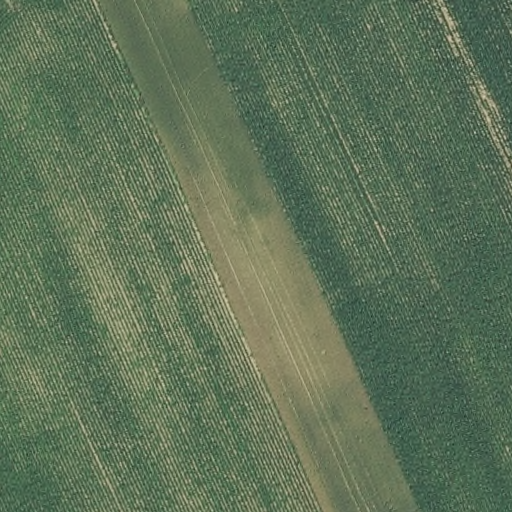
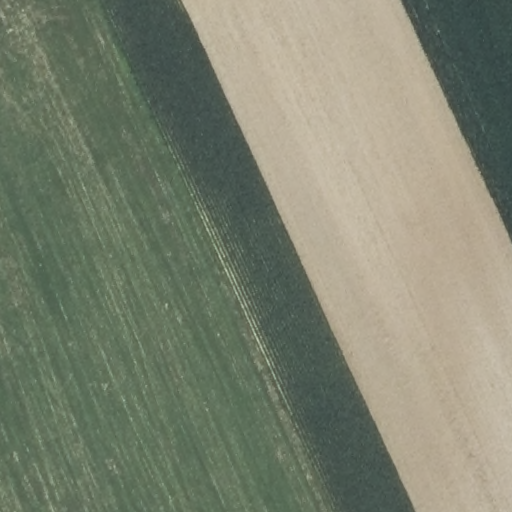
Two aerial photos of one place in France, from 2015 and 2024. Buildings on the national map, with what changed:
[]

